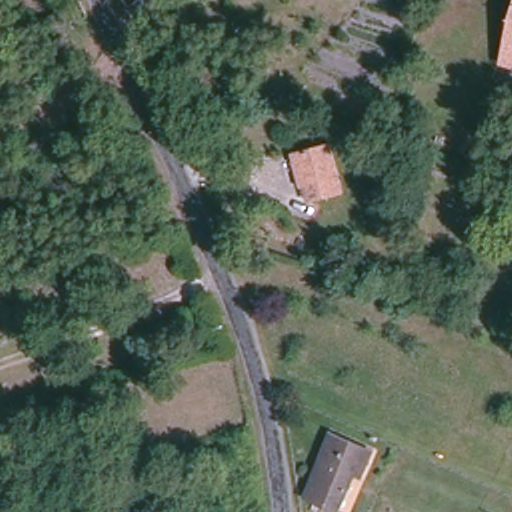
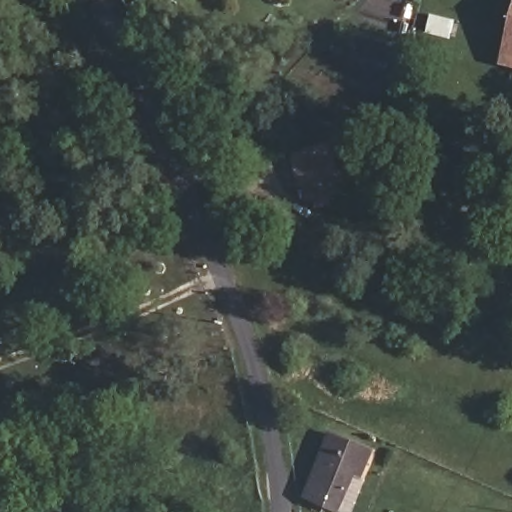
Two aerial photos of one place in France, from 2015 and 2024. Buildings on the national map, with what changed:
unchanged [(499,62),(512,10),(512,65),(499,62)]
unchanged [(307,204),(295,159),(330,150),(341,197),(307,204)]
unchanged [(301,233),(284,225),(289,212),(307,221),(301,233)]
unchanged [(475,217),(487,220),(480,243),(468,240),(475,217)]
unchanged [(383,271),(360,263),(364,252),(388,260),(383,271)]
unchanged [(352,477),(333,512),(330,512),(304,501),(333,433),(375,452),(362,482),(352,477)]

